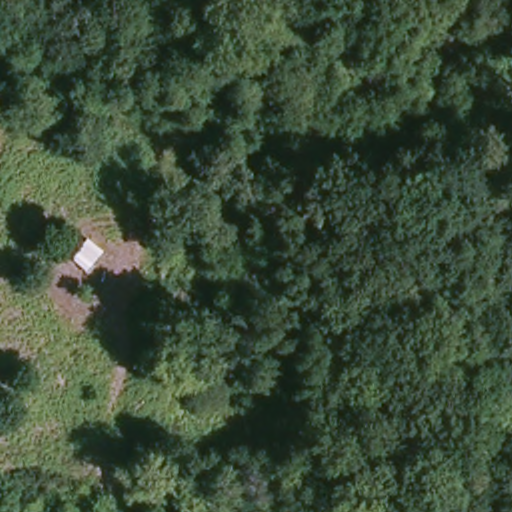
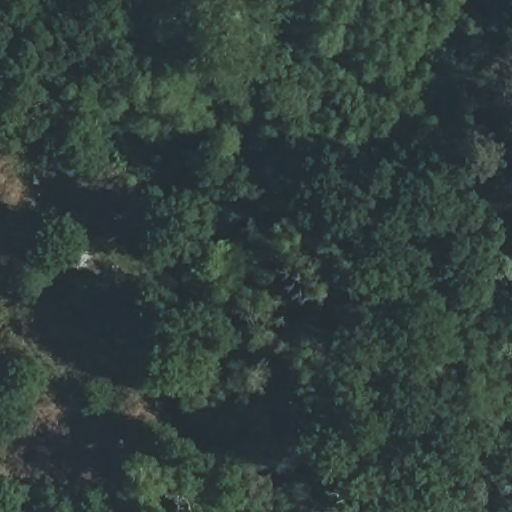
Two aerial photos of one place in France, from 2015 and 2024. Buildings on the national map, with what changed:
unchanged [(87,275),(69,260),(85,237),(91,226),(108,240),(87,275)]

